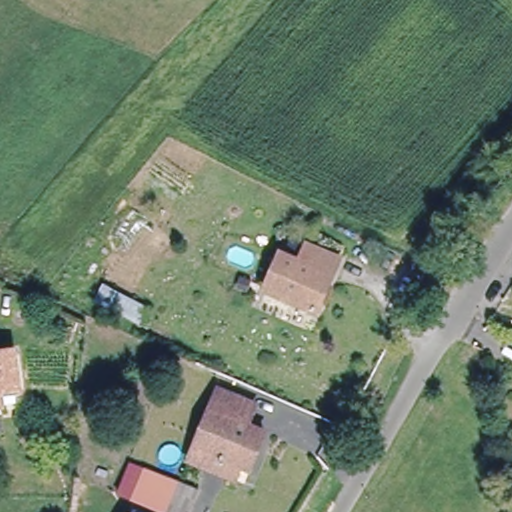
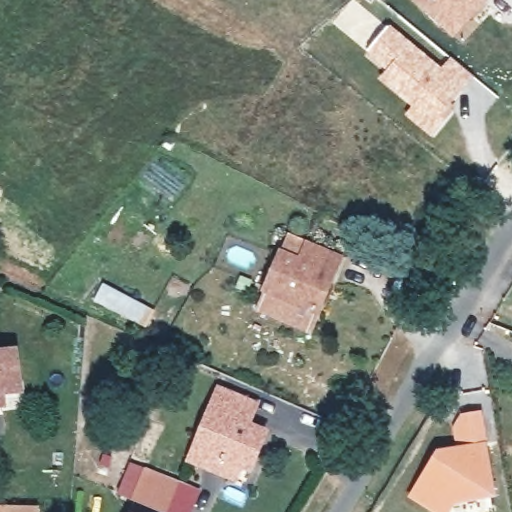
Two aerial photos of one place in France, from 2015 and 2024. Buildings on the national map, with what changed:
new [(413,0),(488,0),(453,37),(413,0)]
new [(441,67),(451,53),(474,75),(452,102),(458,106),(432,137),(405,114),(411,107),(379,80),(387,71),(366,54),(390,25),(441,67)]
unchanged [(280,257),(298,264),(305,246),(337,259),(315,314),(265,293),(280,257)]
unchanged [(13,353),(18,390),(0,392),(0,355),(13,353)]
unchanged [(195,460),(185,455),(217,386),(246,399),(236,418),(260,429),(241,467),(232,462),(227,474),(195,460)]
new [(455,505),(452,512),(434,512),(408,496),(436,451),(487,442),(496,496),(455,505)]
unchanged [(191,488),(182,512),(172,512),(136,497),(146,470),(191,488)]
new [(37,509),(37,512),(0,512),(0,509),(37,509)]

